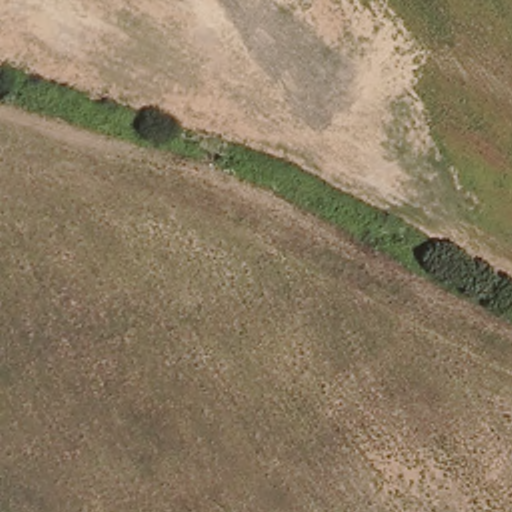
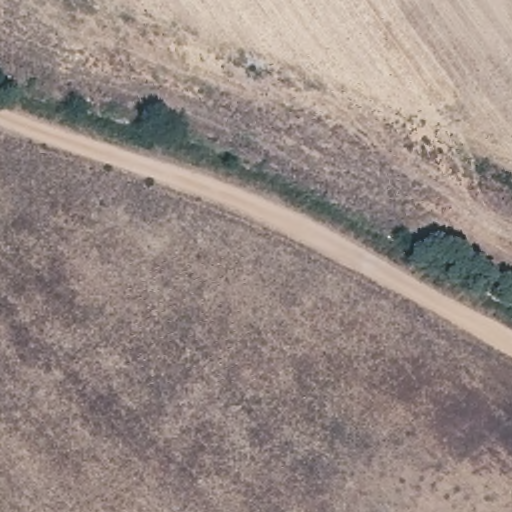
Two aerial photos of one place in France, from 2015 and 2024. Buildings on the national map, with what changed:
[]

